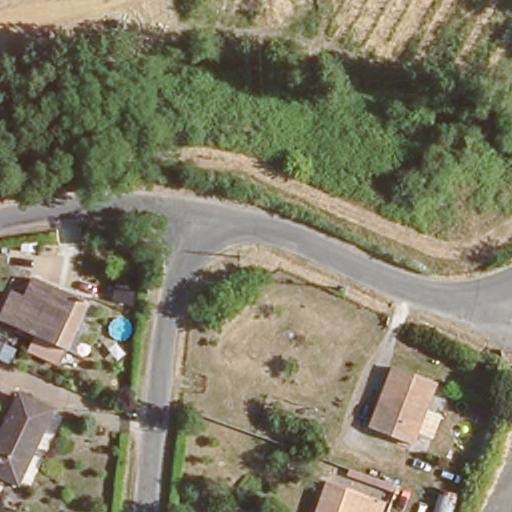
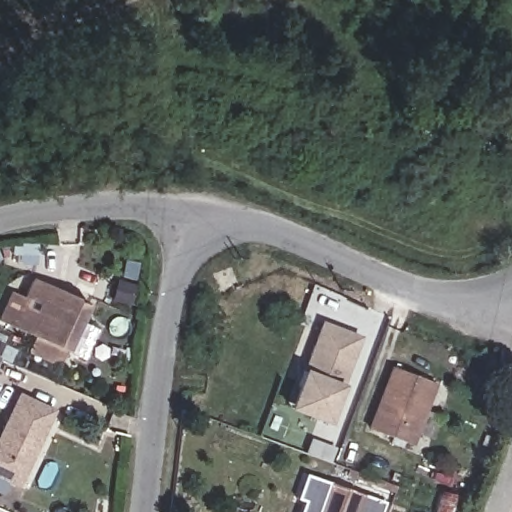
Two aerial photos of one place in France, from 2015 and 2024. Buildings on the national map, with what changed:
unchanged [(0,322),(0,320),(11,292),(24,297),(31,279),(89,302),(70,351),(0,322)]
new [(362,336),(329,425),(288,409),(321,320),(362,336)]
unchanged [(371,428),(397,362),(436,377),(410,443),(371,428)]
unchanged [(0,442),(19,402),(49,416),(18,488),(0,481),(0,442)]
unchanged [(333,485),(367,497),(383,502),(380,512),(322,512),(333,485)]
unchanged [(444,490),(462,496),(456,512),(437,512),(444,490)]

